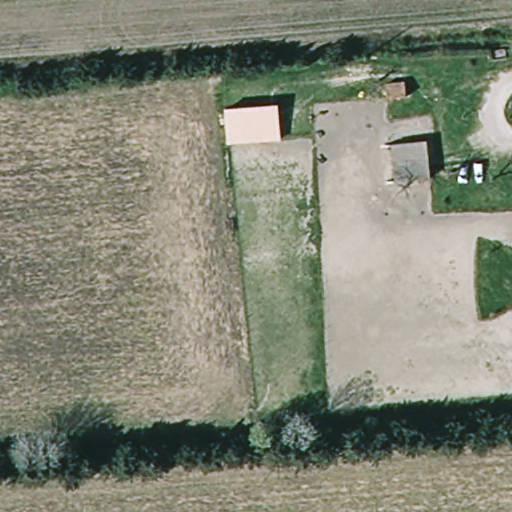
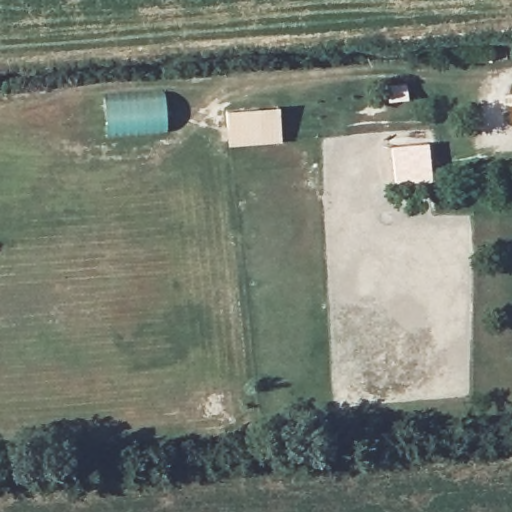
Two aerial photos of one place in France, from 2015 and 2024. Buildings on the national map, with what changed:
unchanged [(404,85),(406,99),(388,100),(387,86),(404,85)]
new [(106,136),(105,98),(163,95),(167,134),(106,136)]
unchanged [(226,110),(278,105),(280,139),(228,143),(226,110)]
unchanged [(424,144),(429,181),(395,185),(391,147),(424,144)]

